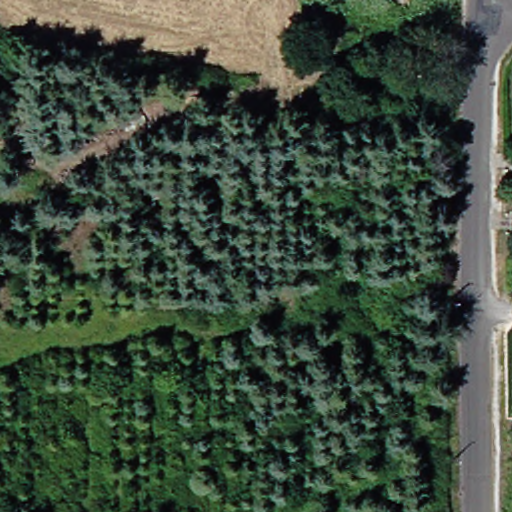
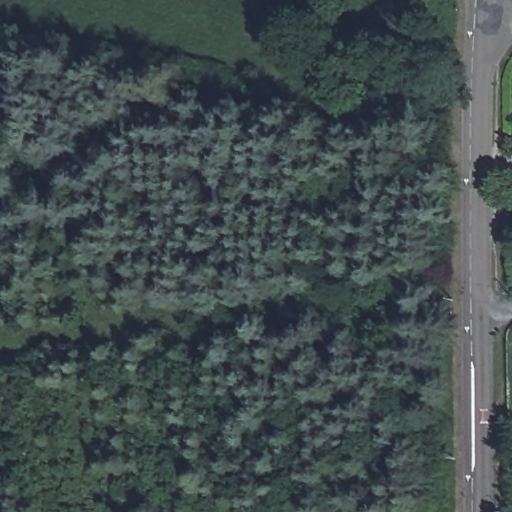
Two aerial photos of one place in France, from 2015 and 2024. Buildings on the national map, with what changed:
[]

